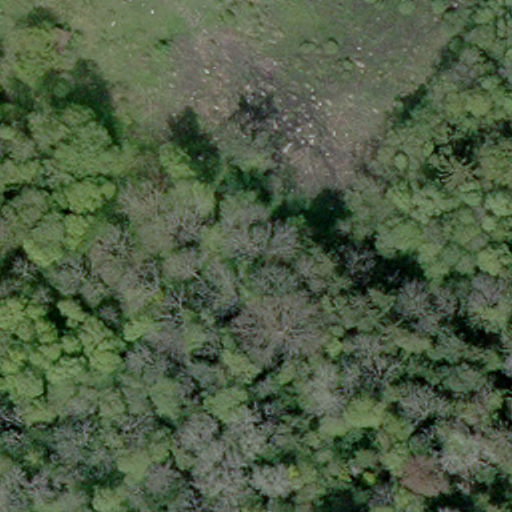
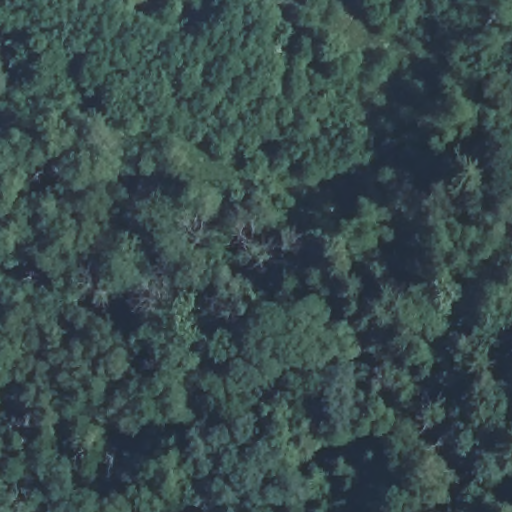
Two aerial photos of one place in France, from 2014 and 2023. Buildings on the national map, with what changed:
unchanged [(88,51),(83,70),(65,66),(70,47),(88,51)]

